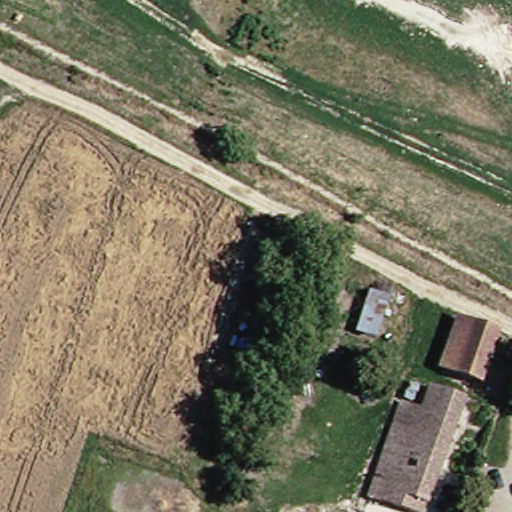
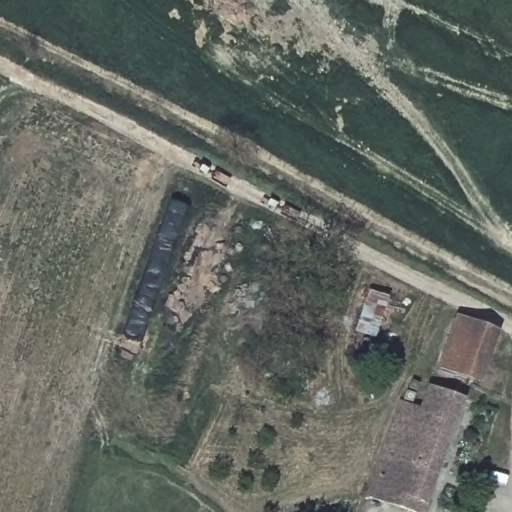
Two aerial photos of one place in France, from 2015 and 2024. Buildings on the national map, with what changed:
unchanged [(347,327),(358,291),(376,296),(363,332),(347,327)]
unchanged [(475,381),(462,377),(438,368),(452,322),(482,327),(492,332),(475,381)]
unchanged [(427,383),(455,396),(416,512),(411,512),(365,497),(396,402),(417,409),(427,383)]

